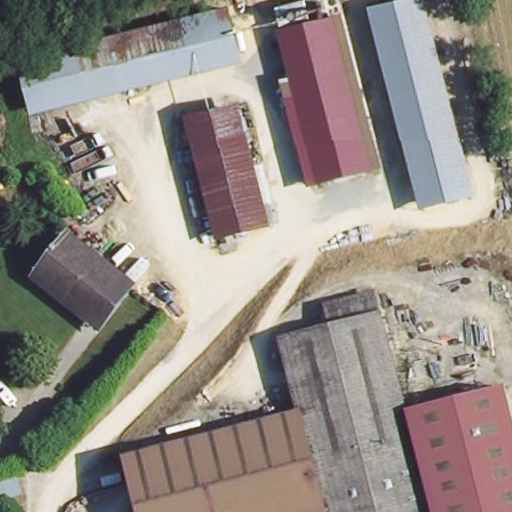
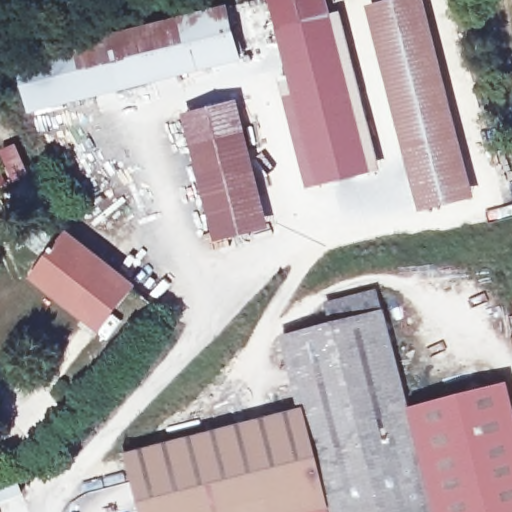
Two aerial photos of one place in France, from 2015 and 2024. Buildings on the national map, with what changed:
unchanged [(315,0),(355,169),(318,178),(274,1),(280,0),(315,0)]
unchanged [(431,0),(479,193),(421,208),(371,5),(392,0),(431,0)]
unchanged [(110,41),(226,10),(238,58),(120,86),(110,41)]
unchanged [(71,98),(35,106),(24,64),(60,54),(110,41),(120,86),(71,98)]
unchanged [(243,104),(268,220),(220,232),(193,115),(243,104)]
unchanged [(118,296),(98,324),(82,312),(60,295),(63,289),(31,267),(58,230),(111,269),(113,270),(128,282),(118,296)]
unchanged [(278,342),(277,334),(325,323),(320,299),(371,290),(378,318),(278,342)]
unchanged [(299,409),(278,342),(378,318),(386,316),(414,407),(512,386),(512,387),(512,512),(140,512),(126,455),(299,409)]
unchanged [(19,494),(0,502),(0,480),(13,476),(19,494)]

